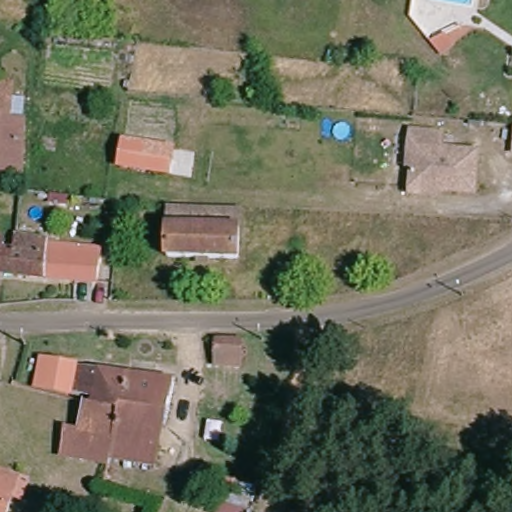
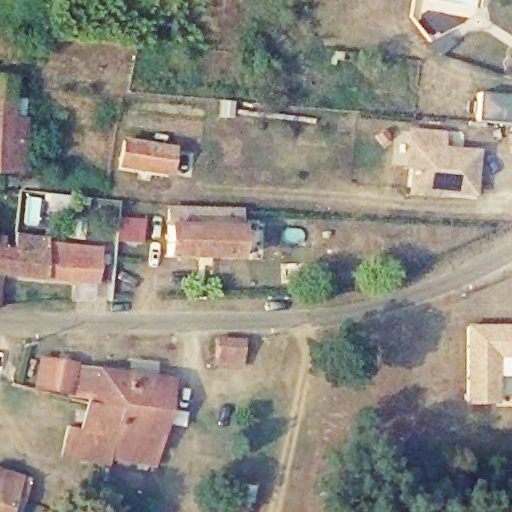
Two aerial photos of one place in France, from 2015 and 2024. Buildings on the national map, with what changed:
unchanged [(1,67),(0,78),(0,66),(1,67)]
unchanged [(11,119),(25,120),(21,174),(0,172),(0,78),(14,79),(11,119)]
new [(512,154),(510,154),(512,127),(512,154)]
unchanged [(473,192),(410,186),(414,147),(409,146),(411,130),(442,133),(441,149),(476,152),(473,192)]
unchanged [(179,176),(167,172),(166,176),(118,167),(124,139),(172,148),(184,151),(179,176)]
unchanged [(240,205),(239,254),(166,251),(168,202),(240,205)]
unchanged [(3,237),(2,247),(13,249),(15,235),(44,240),(44,250),(98,256),(95,284),(0,275),(0,237),(3,237)]
new [(464,325),(512,325),(512,356),(496,356),(496,403),(465,403),(464,325)]
unchanged [(249,339),(242,359),(222,358),(209,356),(209,338),(249,339)]
unchanged [(89,400),(23,385),(28,355),(81,366),(136,372),(137,360),(159,362),(157,376),(179,378),(171,417),(122,410),(88,402),(89,400)]
unchanged [(63,457),(69,427),(82,429),(88,402),(122,410),(114,460),(113,467),(63,457)]
unchanged [(122,410),(171,417),(160,468),(114,460),(122,410)]
unchanged [(26,480),(33,482),(26,503),(19,501),(16,500),(13,512),(0,512),(0,471),(26,480)]
unchanged [(256,486),(250,512),(214,512),(223,477),(256,486)]

